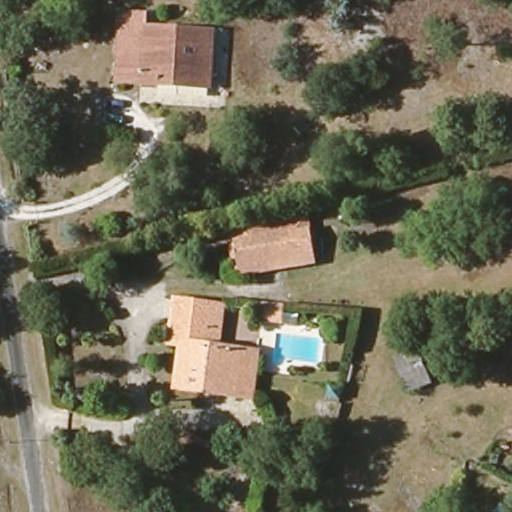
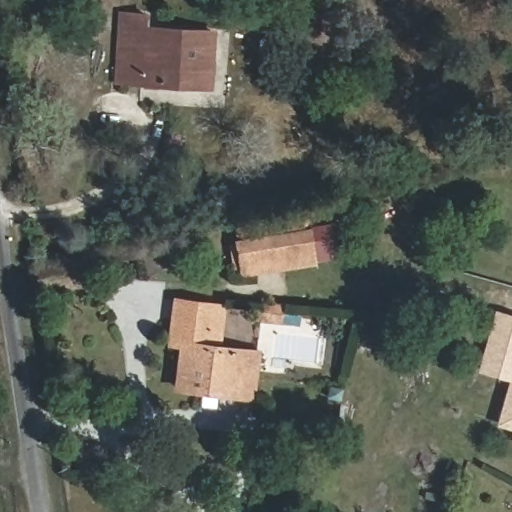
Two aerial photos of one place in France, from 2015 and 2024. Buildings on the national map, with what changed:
unchanged [(145,90),(120,89),(123,24),(148,25),(147,35),(212,37),(210,92),(145,90)]
unchanged [(308,229),(316,262),(244,280),(235,246),(308,229)]
unchanged [(256,405),(238,402),(181,393),(187,351),(180,350),(187,305),(236,313),(230,352),(245,355),(263,357),(256,405)]
new [(495,424),(507,381),(476,372),(494,309),(512,314),(512,429),(495,424)]
new [(511,445),(512,440),(512,445),(511,445)]

